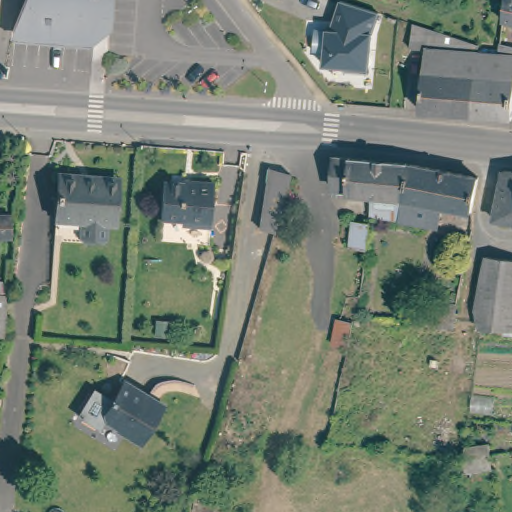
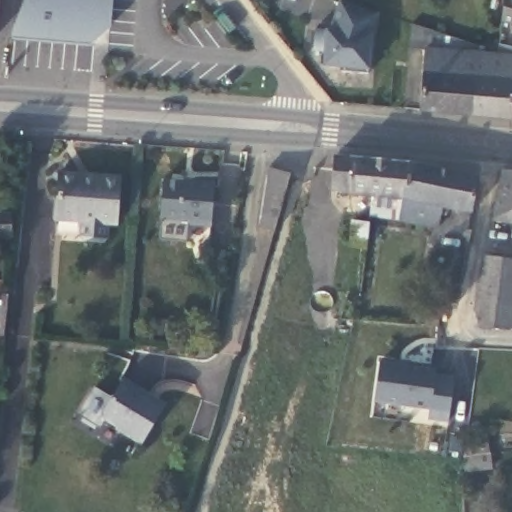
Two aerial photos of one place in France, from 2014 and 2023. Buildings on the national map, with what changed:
unchanged [(0,12),(0,0),(2,0),(0,12)]
unchanged [(21,0),(107,0),(107,3),(106,23),(94,36),(75,34),(10,28),(10,27),(21,0)]
unchanged [(505,18),(507,0),(512,0),(512,20),(505,18)]
unchanged [(379,13),(374,34),(371,34),(368,69),(366,73),(344,71),(344,67),(322,66),(324,44),(313,43),(313,28),(323,29),(331,29),(340,2),(379,13)]
unchanged [(409,20),(420,24),(476,41),(476,48),(423,45),(423,47),(406,46),(409,20)]
unchanged [(423,45),(476,48),(471,112),(418,107),(423,47),(423,45)]
unchanged [(511,115),(471,112),(476,48),(496,49),(512,51),(512,100),(511,115)]
unchanged [(352,187),(336,186),(339,152),(416,157),(406,196),(401,218),(374,216),(376,194),(351,192),(352,187)]
unchanged [(481,172),(473,206),(451,201),(449,208),(442,206),(439,222),(401,218),(406,196),(416,157),(481,172)]
unchanged [(86,234),(82,229),(83,215),(58,213),(61,166),(85,168),(122,171),(121,175),(118,217),(110,217),(108,232),(104,236),(86,234)]
unchanged [(255,228),(265,168),(287,175),(271,232),(255,228)]
unchanged [(501,169),(512,170),(512,223),(492,219),(501,169)]
unchanged [(177,219),(157,218),(160,179),(191,182),(192,179),(211,181),(208,225),(183,223),(177,219)]
unchanged [(11,237),(0,238),(0,215),(9,214),(11,237)]
unchanged [(478,304),(481,256),(512,260),(512,330),(484,328),(478,304)]
unchanged [(5,336),(0,336),(0,278),(11,279),(5,336)]
demolished [(294,359),(283,356),(285,346),(296,348),(294,359)]
new [(448,424),(427,422),(429,411),(375,404),(381,361),(436,369),(436,375),(455,379),(448,424)]
unchanged [(142,440),(117,424),(116,421),(105,415),(103,409),(123,377),(165,403),(142,440)]
unchanged [(463,446),(486,443),(488,454),(461,458),(463,446)]

